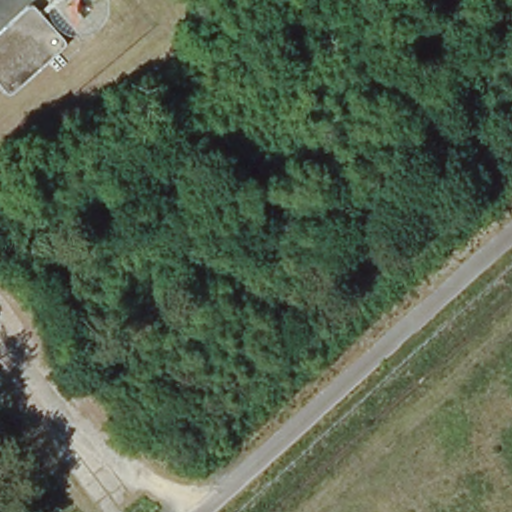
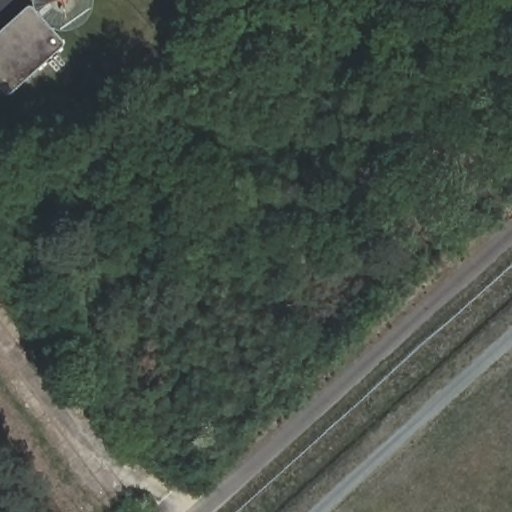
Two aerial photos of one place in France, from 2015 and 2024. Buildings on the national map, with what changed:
unchanged [(65,44),(6,96),(0,89),(0,32),(30,7),(65,44)]

